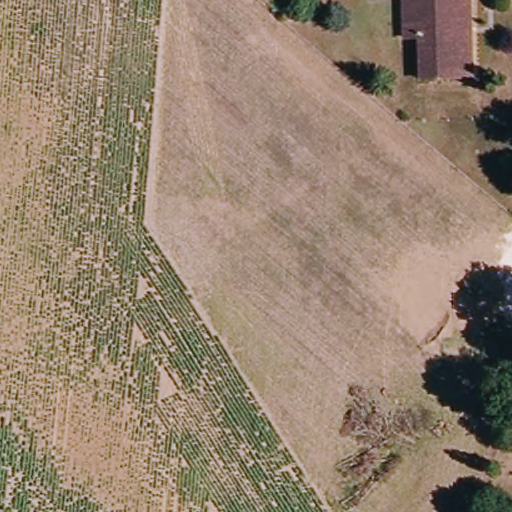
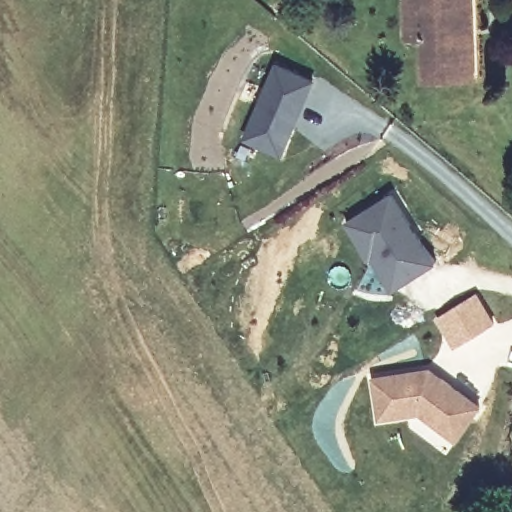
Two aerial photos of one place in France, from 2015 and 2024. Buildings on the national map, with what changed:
unchanged [(438,82),(433,43),(419,43),(417,0),(480,0),(487,37),(482,37),(487,80),(438,82)]
new [(274,65),(311,81),(279,155),(242,139),(274,65)]
new [(438,262),(395,290),(373,258),(370,261),(345,223),(392,192),(438,262)]
new [(474,294),(493,323),(455,347),(436,318),(474,294)]
new [(459,441),(422,415),(379,423),(372,377),(429,367),(482,405),(459,441)]

